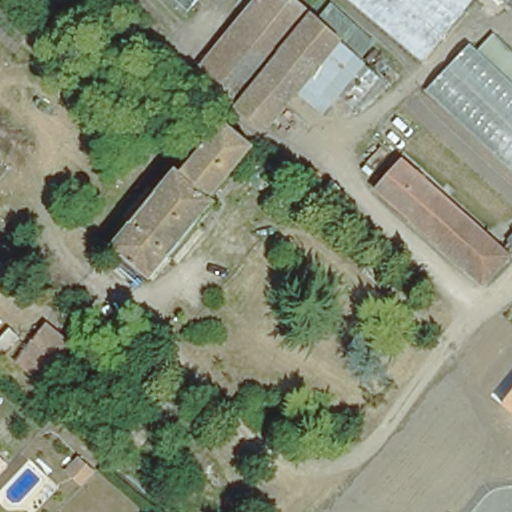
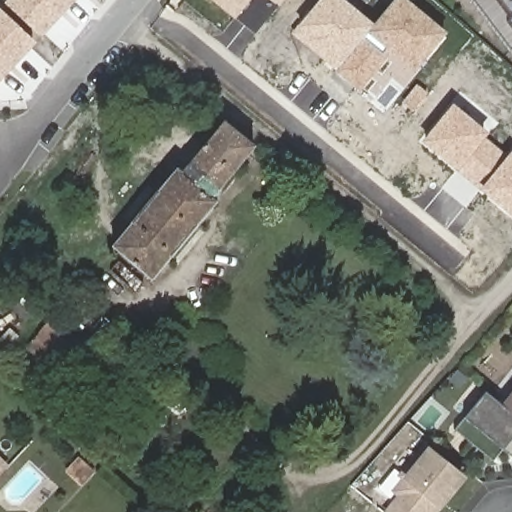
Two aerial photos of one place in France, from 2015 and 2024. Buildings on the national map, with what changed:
new [(41,37),(5,2),(7,0),(75,0),(41,37)]
demolished [(185,16),(167,0),(201,0),(185,16)]
demolished [(301,96),(267,133),(200,74),(265,0),(294,0),(317,19),(346,45),(301,96)]
new [(242,30),(206,0),(270,0),(242,30)]
new [(311,0),(340,0),(370,24),(391,0),(403,0),(442,31),(408,69),(382,49),(349,91),(322,66),(281,30),(311,0)]
demolished [(424,59),(354,0),(476,0),(424,59)]
new [(512,49),(507,52),(469,0),(512,0),(512,49)]
demolished [(331,3),(376,43),(362,60),(387,82),(359,115),(340,101),(323,117),(301,96),(346,45),(317,19),(331,3)]
new [(0,81),(0,9),(36,42),(0,81)]
demolished [(470,44),(477,50),(490,35),(512,54),(512,176),(423,93),(470,44)]
new [(484,132),(478,139),(500,156),(507,151),(512,155),(512,214),(510,217),(452,171),(426,150),(417,140),(450,103),(484,132)]
unchanged [(113,247),(174,172),(181,177),(225,124),(230,129),(251,146),(205,200),(209,205),(149,276),(113,247)]
demolished [(482,289),(375,191),(405,162),(501,251),(505,255),(510,259),(482,289)]
demolished [(507,238),(512,233),(512,244),(508,242),(507,238)]
unchanged [(87,357),(74,372),(58,363),(40,383),(12,362),(46,322),(87,357)]
unchanged [(491,460),(452,431),(481,392),(498,405),(512,389),(512,459),(500,449),(491,460)]
new [(382,512),(396,496),(390,491),(400,479),(396,476),(424,442),(427,445),(447,461),(467,477),(440,510),(438,512),(382,512)]
new [(4,465),(0,469),(0,462),(4,465)]

